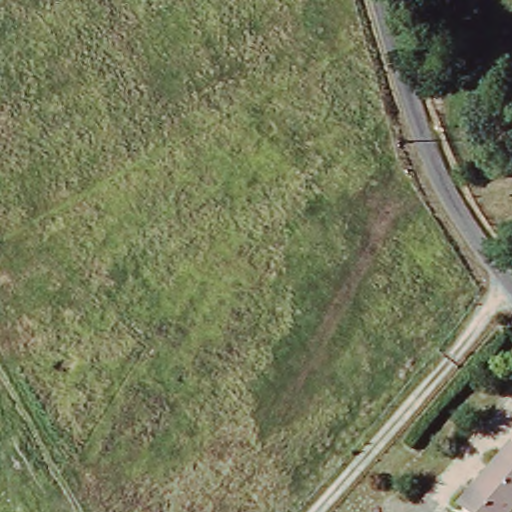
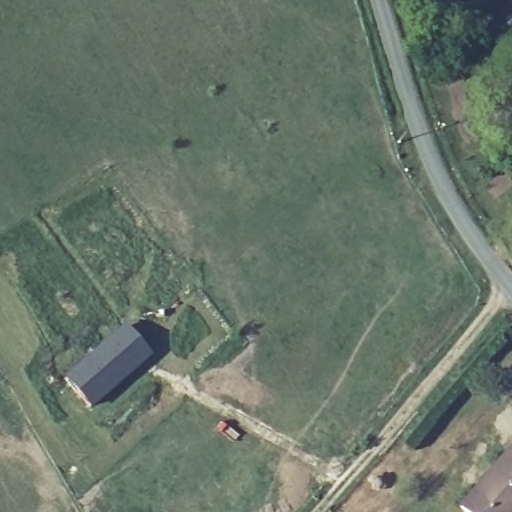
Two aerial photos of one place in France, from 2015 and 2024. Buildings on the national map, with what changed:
new [(85,408),(60,380),(119,329),(144,357),(85,408)]
unchanged [(506,449),(512,453),(512,505),(506,512),(461,512),(456,508),(497,457),(504,447),(506,449)]

